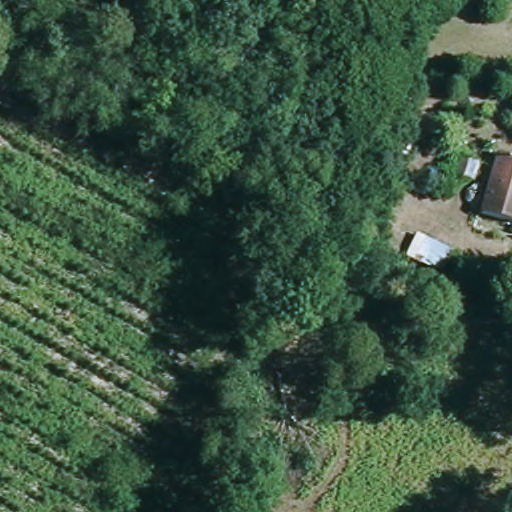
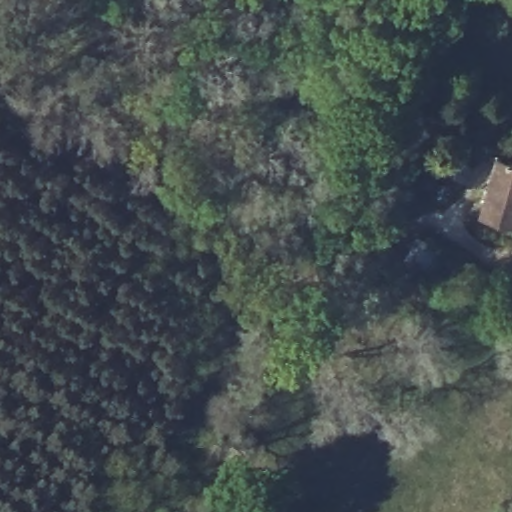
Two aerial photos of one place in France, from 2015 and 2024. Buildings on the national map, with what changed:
unchanged [(485,215),(500,151),(512,154),(512,222),(485,215)]

